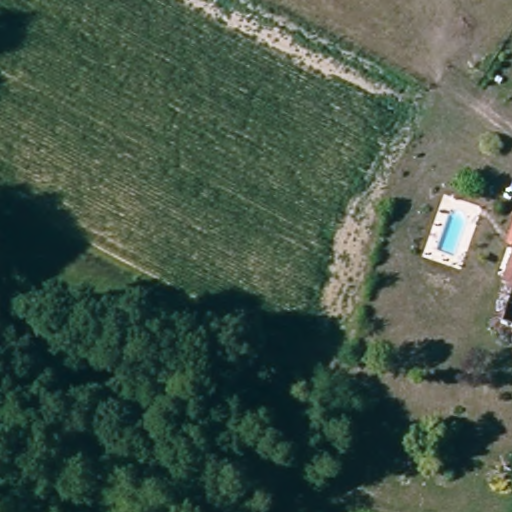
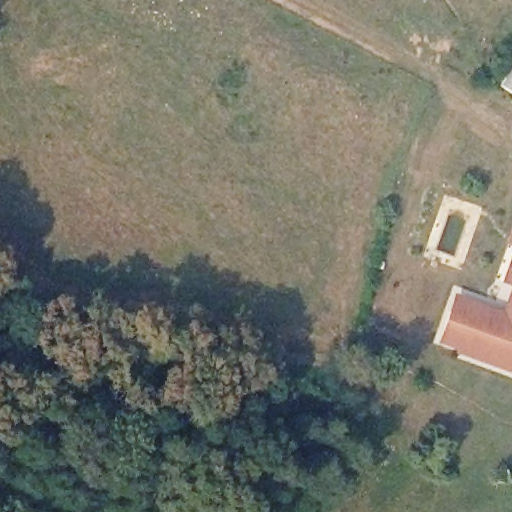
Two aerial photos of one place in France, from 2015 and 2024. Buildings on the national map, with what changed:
new [(512,231),(512,247),(507,245),(512,231)]
new [(455,291),(503,310),(512,285),(504,282),(512,261),(512,370),(437,343),(455,291)]
demolished [(512,278),(512,328),(496,322),(512,278)]

